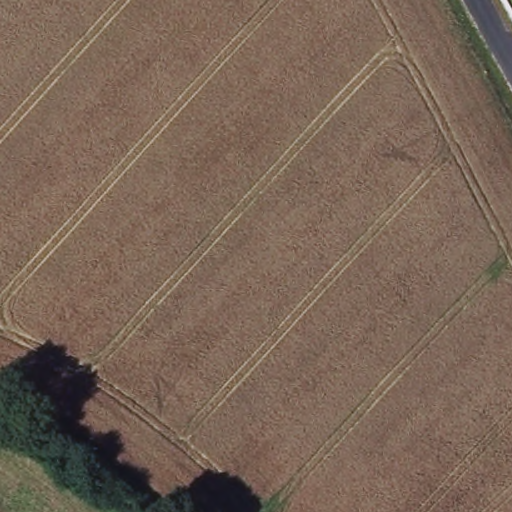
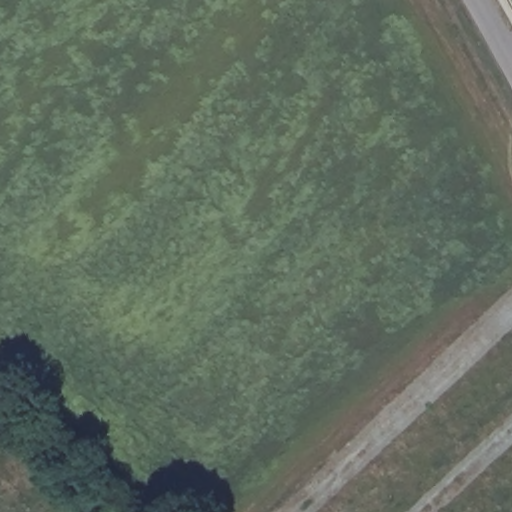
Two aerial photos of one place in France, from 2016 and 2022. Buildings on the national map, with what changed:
[]

